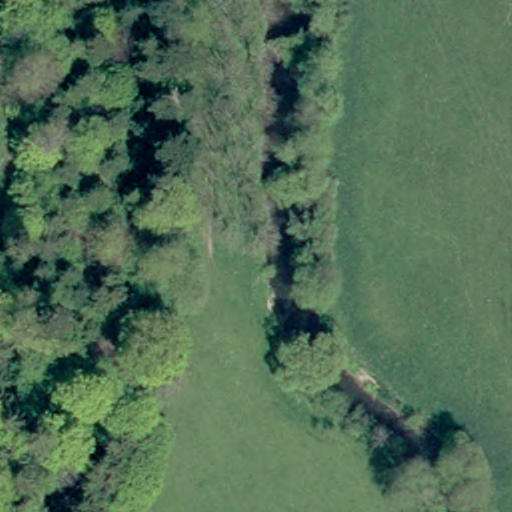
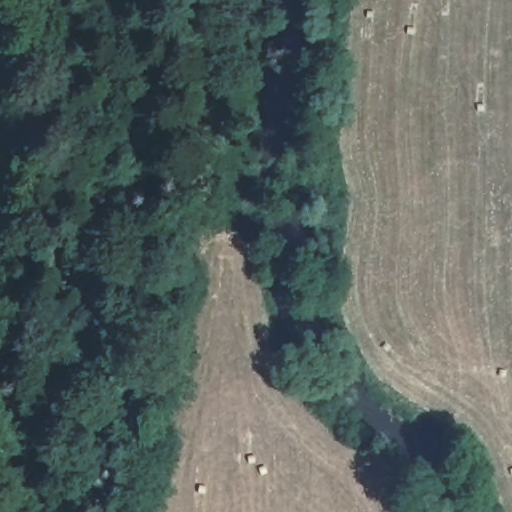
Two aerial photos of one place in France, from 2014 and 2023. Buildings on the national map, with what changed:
unchanged [(86,395),(93,397),(109,402),(108,410),(89,405),(85,403),(86,395)]

